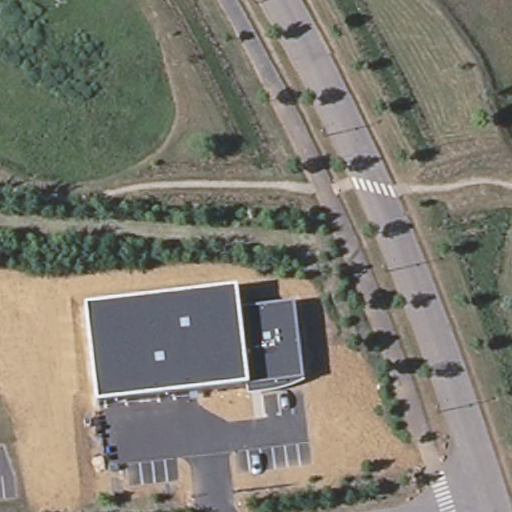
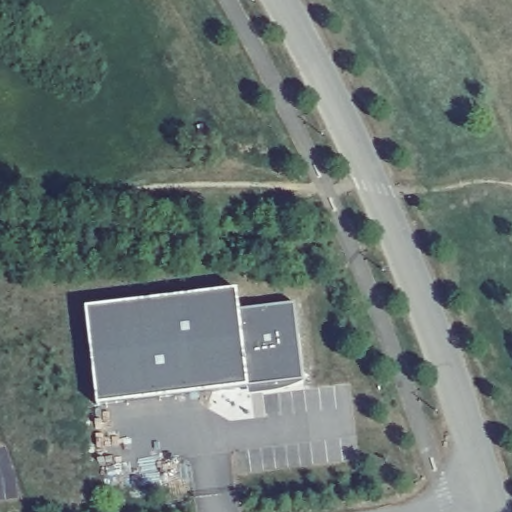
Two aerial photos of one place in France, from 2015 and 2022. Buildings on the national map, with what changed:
unchanged [(237,289),(240,309),(295,302),(305,377),(278,388),(250,392),(250,387),(99,406),(86,307),(237,289)]

